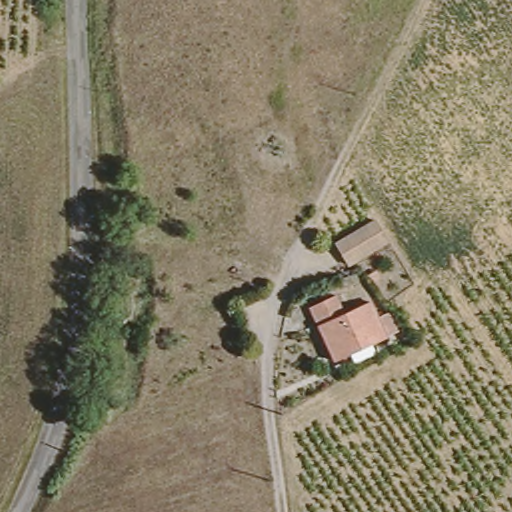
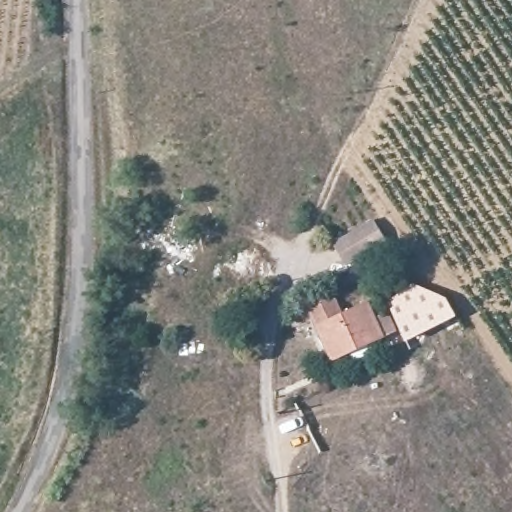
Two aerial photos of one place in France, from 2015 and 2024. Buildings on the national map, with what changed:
unchanged [(331,243),(372,217),(387,241),(348,267),(331,243)]
new [(413,283),(447,297),(457,316),(407,342),(384,297),(413,283)]
unchanged [(369,325),(385,316),(396,335),(324,369),(303,322),(331,310),(340,325),(363,313),(369,325)]

